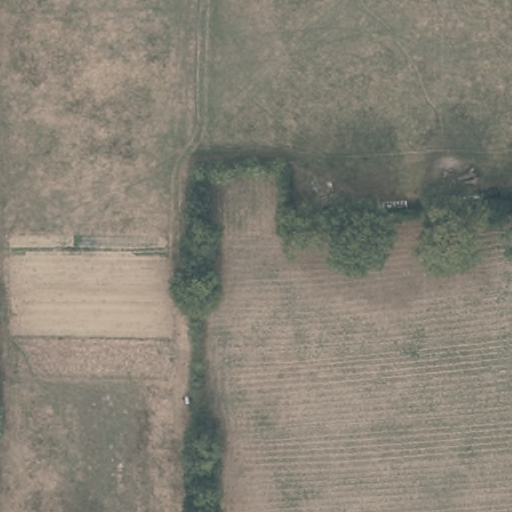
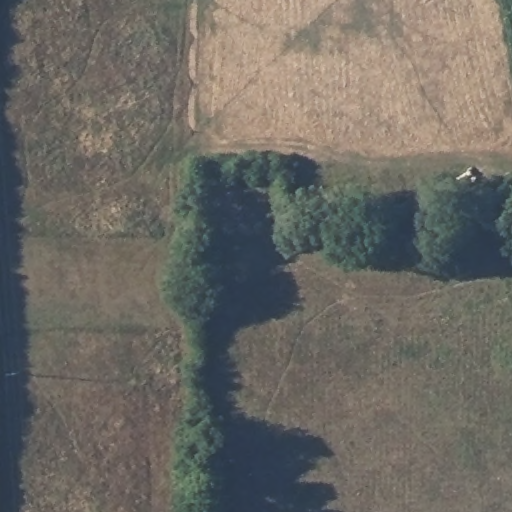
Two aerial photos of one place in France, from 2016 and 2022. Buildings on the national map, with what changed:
[]

